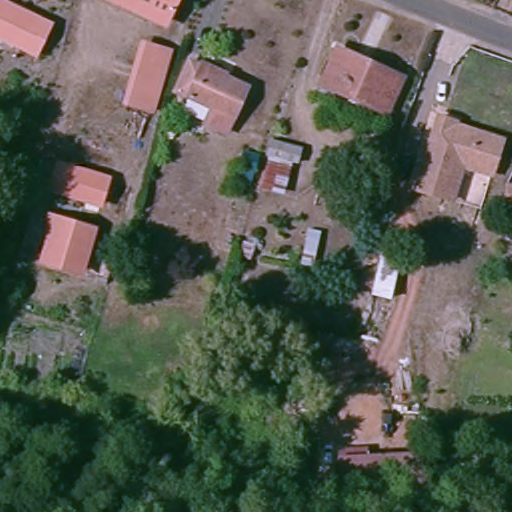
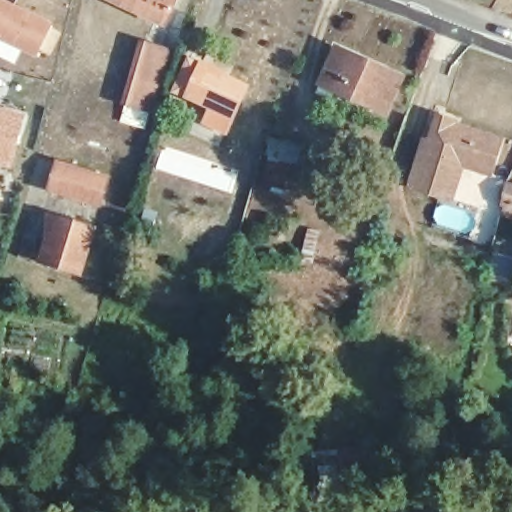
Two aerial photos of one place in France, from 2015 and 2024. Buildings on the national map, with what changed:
unchanged [(0,0),(4,0),(54,25),(36,59),(0,41),(0,0)]
unchanged [(172,19),(117,0),(177,0),(172,19)]
demolished [(84,15),(76,49),(68,47),(76,12),(84,15)]
unchanged [(176,52),(155,117),(123,109),(143,42),(176,52)]
unchanged [(403,78),(387,114),(319,85),(335,49),(403,78)]
unchanged [(229,80),(227,85),(250,97),(229,138),(205,126),(213,112),(182,97),(198,65),(229,80)]
new [(12,169),(0,165),(0,106),(26,113),(12,169)]
unchanged [(497,183),(468,173),(456,207),(416,193),(432,148),(437,150),(446,124),(462,130),(461,133),(481,140),(508,150),(497,183)]
unchanged [(275,142),(307,151),(302,169),(294,167),(285,199),(263,189),(275,142)]
unchanged [(108,186),(101,211),(53,196),(60,170),(108,186)]
unchanged [(509,211),(512,201),(512,211),(509,211)]
unchanged [(512,214),(512,222),(510,222),(512,214)]
unchanged [(93,237),(81,276),(49,267),(56,244),(48,240),(53,225),(93,237)]
unchanged [(424,452),(426,482),(338,486),(337,459),(337,448),(368,446),(368,454),(424,452)]

